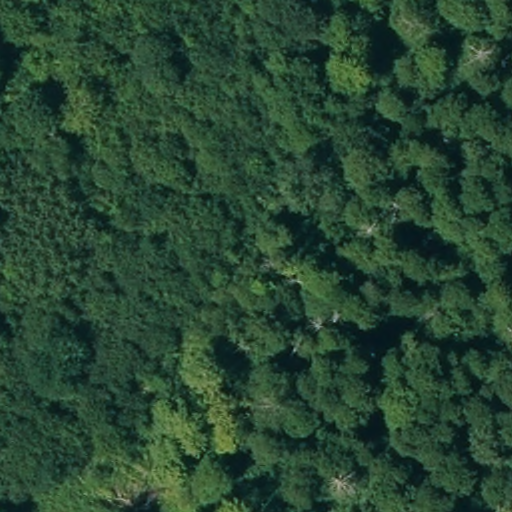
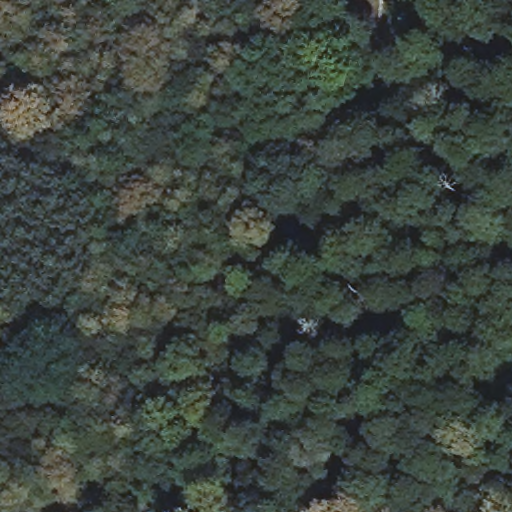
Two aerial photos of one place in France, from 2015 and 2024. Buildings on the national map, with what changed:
[]

